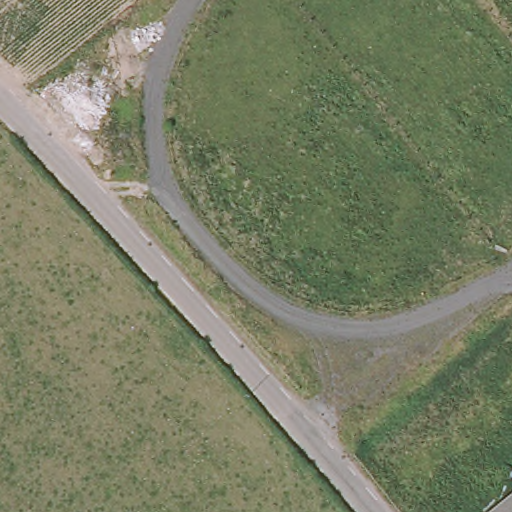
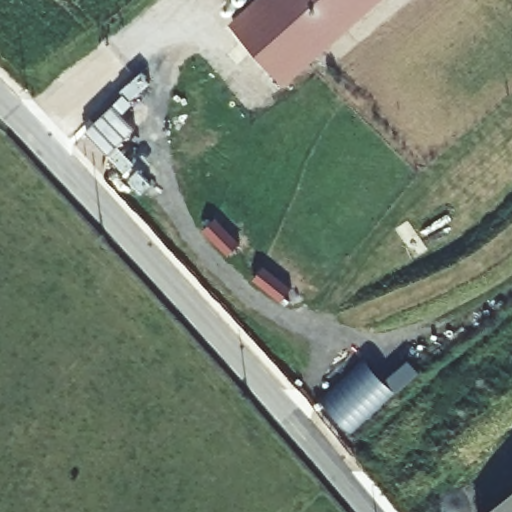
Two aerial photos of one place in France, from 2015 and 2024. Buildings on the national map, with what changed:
new [(230,23),(255,0),(383,0),(285,87),(257,55),(230,23)]
unchanged [(492,512),(512,495),(512,512),(492,512)]

